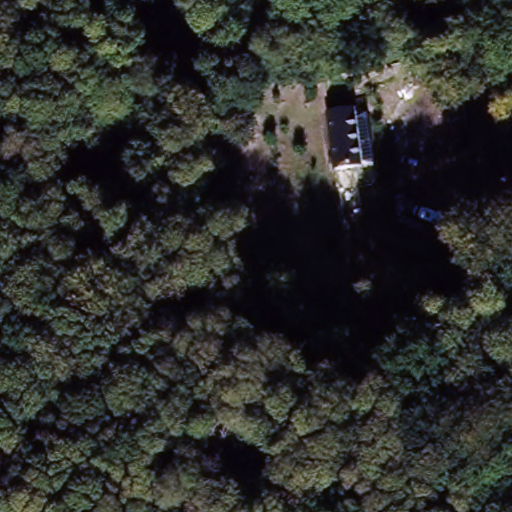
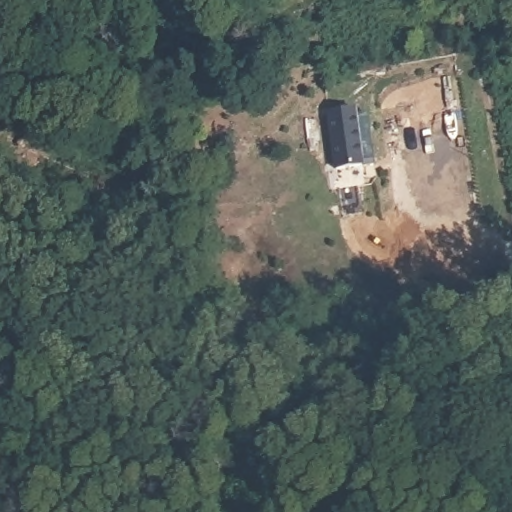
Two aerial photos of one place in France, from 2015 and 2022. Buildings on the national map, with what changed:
unchanged [(328,122),(354,118),(361,169),(336,172),(328,122)]

